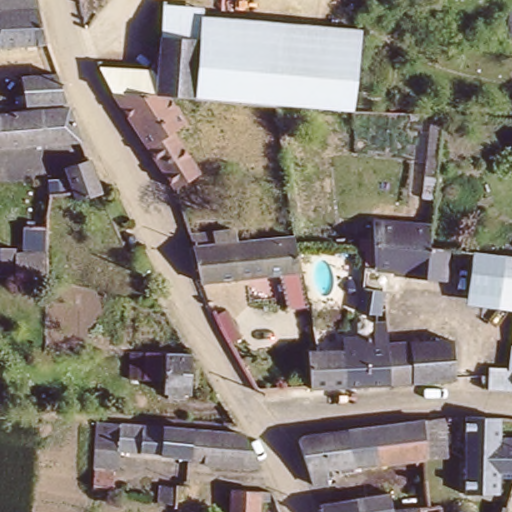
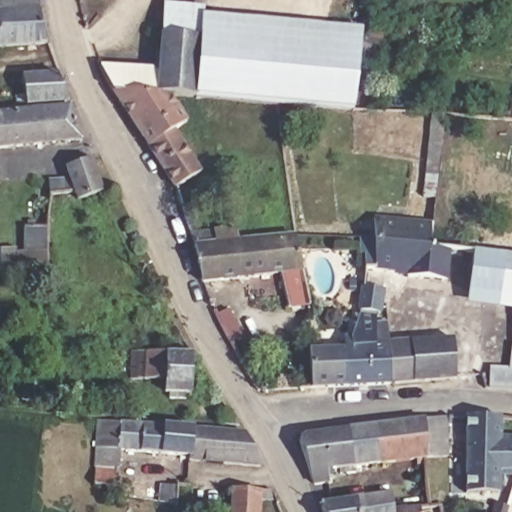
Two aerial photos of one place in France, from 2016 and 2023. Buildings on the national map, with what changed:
unchanged [(39,5),(50,40),(0,44),(0,0),(38,0),(39,5)]
unchanged [(169,10),(205,13),(201,49),(165,45),(169,10)]
unchanged [(362,26),(360,64),(201,49),(205,13),(362,26)]
unchanged [(161,77),(165,45),(201,49),(194,103),(169,103),(159,102),(161,77)]
unchanged [(194,105),(194,103),(201,49),(360,64),(356,119),(285,112),(194,105)]
unchanged [(61,66),(69,94),(29,98),(25,69),(61,66)]
unchanged [(161,77),(159,102),(121,99),(106,73),(161,77)]
unchanged [(36,100),(68,99),(83,134),(0,146),(0,108),(36,100)]
unchanged [(159,102),(169,103),(187,139),(177,143),(197,186),(174,196),(165,177),(130,113),(121,99),(159,102)]
unchanged [(431,111),(447,112),(438,194),(424,193),(431,111)]
unchanged [(84,161),(107,151),(123,186),(96,195),(91,179),(71,186),(67,175),(86,168),(84,161)]
unchanged [(53,214),(53,192),(66,187),(66,226),(45,225),(45,214),(53,214)]
unchanged [(441,211),(439,239),(371,232),(370,204),(441,211)]
unchanged [(297,231),(303,278),(203,288),(194,243),(297,231)]
unchanged [(439,239),(465,243),(461,281),(411,276),(411,270),(372,266),(372,263),(371,232),(439,239)]
unchanged [(466,302),(471,243),(500,248),(496,305),(466,302)]
unchanged [(14,247),(41,247),(41,270),(14,268),(14,247)]
unchanged [(496,305),(500,248),(512,251),(512,307),(496,306),(496,305)]
unchanged [(363,287),(387,286),(387,310),(363,310),(363,287)]
unchanged [(225,304),(232,318),(222,323),(214,309),(225,304)]
unchanged [(317,354),(347,352),(347,334),(371,332),(371,322),(386,322),(386,344),(394,344),(396,384),(313,390),(311,355),(317,354)]
unchanged [(398,344),(458,344),(460,382),(419,382),(396,384),(394,344),(398,344)]
unchanged [(152,381),(152,374),(144,373),(146,350),(196,354),(195,392),(166,391),(166,381),(152,381)]
unchanged [(486,377),(485,369),(512,371),(512,388),(487,384),(486,377)]
unchanged [(422,414),(445,414),(447,450),(425,452),(326,463),(328,479),(312,482),(300,436),(313,430),(422,414)]
unchanged [(123,444),(122,462),(113,462),(112,483),(90,482),(96,417),(200,426),(197,452),(123,444)]
unchanged [(500,420),(505,496),(474,498),(469,419),(500,420)]
unchanged [(197,452),(200,426),(256,430),(270,465),(196,458),(197,452)]
unchanged [(263,490),(262,512),(233,512),(235,486),(263,490)]
unchanged [(164,490),(177,491),(175,510),(162,508),(164,490)]
unchanged [(361,512),(359,499),(394,494),(396,508),(431,505),(431,512),(361,512)]
unchanged [(361,512),(323,512),(322,505),(359,499),(361,512)]

